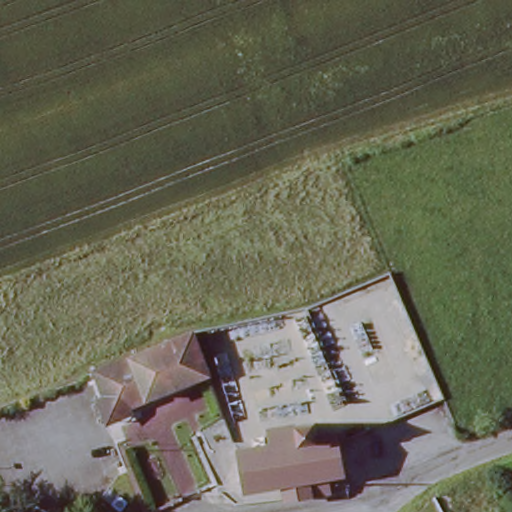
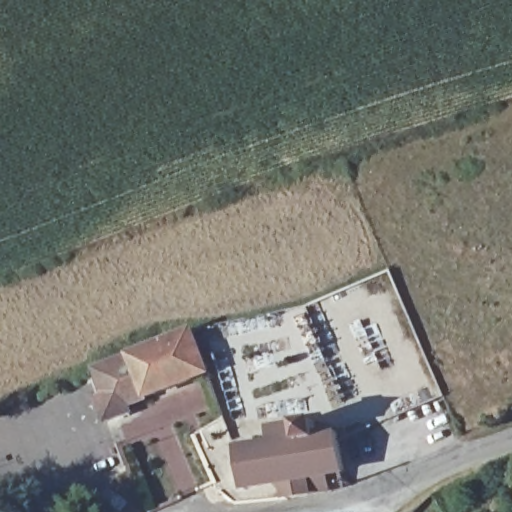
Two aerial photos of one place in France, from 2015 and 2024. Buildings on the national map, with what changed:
unchanged [(125,406),(130,420),(109,428),(101,406),(108,403),(97,376),(195,338),(209,377),(125,406)]
unchanged [(344,476),(328,480),(330,493),(287,500),(284,484),(243,489),(235,447),(271,441),(269,428),(316,423),(319,440),(339,437),(344,476)]

